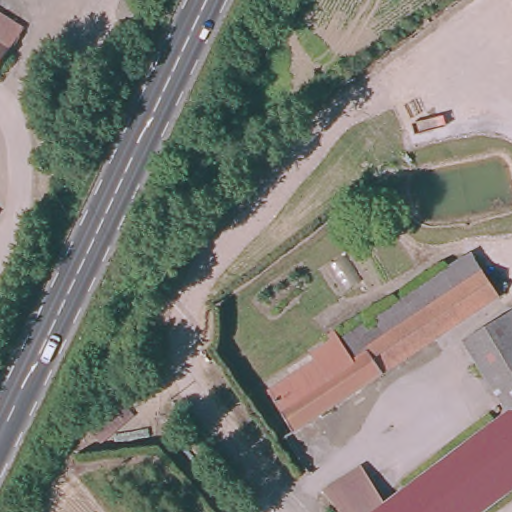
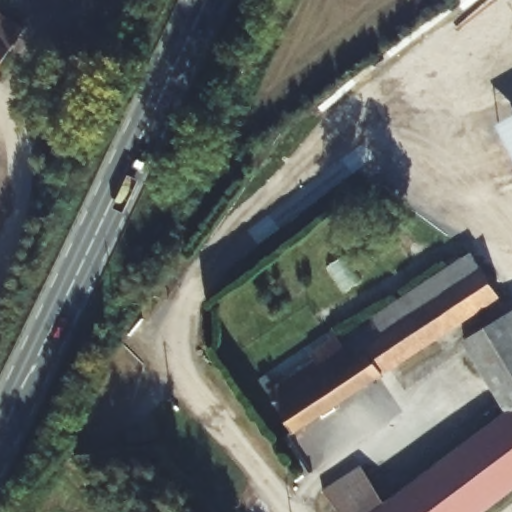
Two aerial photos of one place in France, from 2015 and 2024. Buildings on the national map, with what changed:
unchanged [(0,61),(0,9),(24,24),(0,61)]
new [(497,125),(512,117),(512,153),(497,125)]
unchanged [(262,395),(285,380),(310,363),(307,357),(315,351),(328,342),(325,337),(330,333),(339,344),(422,286),(465,257),(495,298),(474,313),(452,328),(289,436),(262,395)]
unchanged [(480,367),(477,363),(462,344),(487,324),(500,313),(512,304),(512,409),(480,367)]
unchanged [(485,512),(335,512),(324,497),(360,471),(390,507),(397,502),(405,496),(417,486),(411,478),(443,452),(450,461),(470,446),(481,436),(512,411),(512,491),(494,505),(485,512)]

